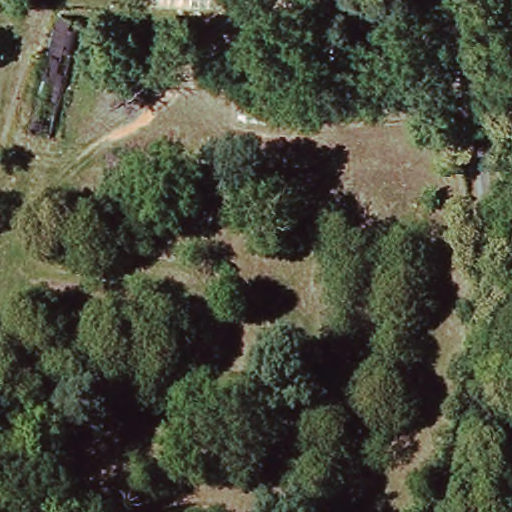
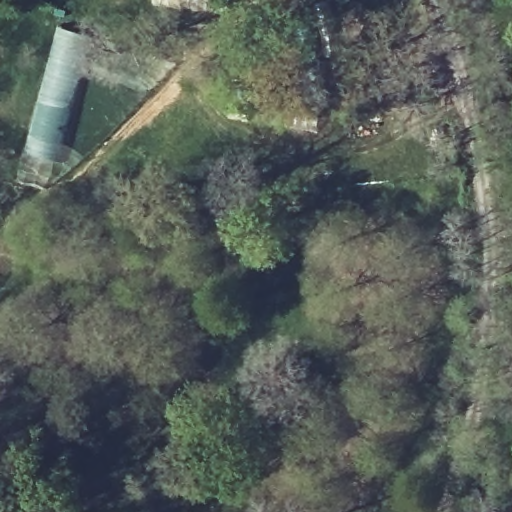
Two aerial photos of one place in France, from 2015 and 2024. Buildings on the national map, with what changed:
new [(57,159),(40,155),(42,147),(33,145),(59,43),(70,28),(82,32),(74,78),(81,80),(69,129),(57,159)]

